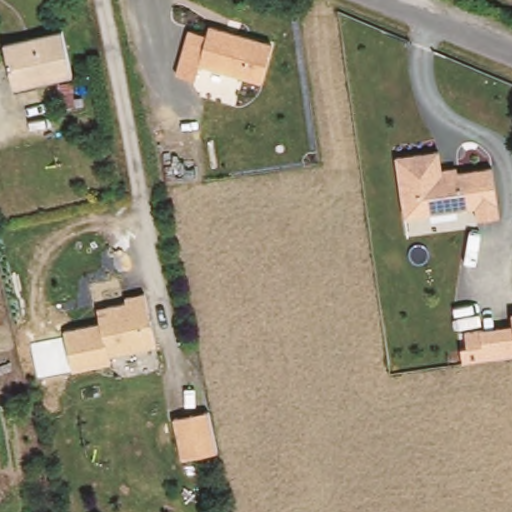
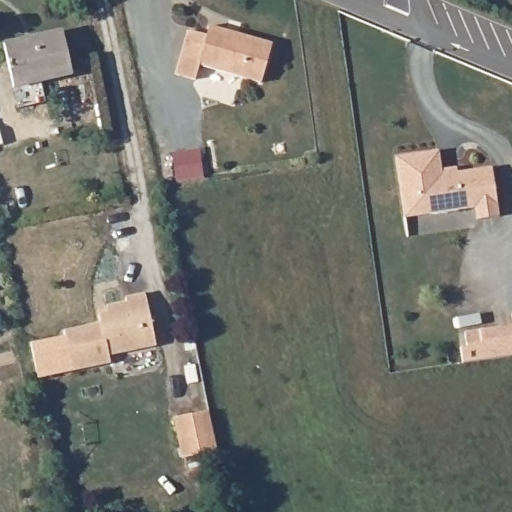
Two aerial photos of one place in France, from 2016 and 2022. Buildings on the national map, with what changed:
unchanged [(262,76),(201,60),(197,75),(177,70),(190,25),(207,30),(210,21),(273,38),(262,76)]
unchanged [(64,30),(75,75),(18,89),(12,67),(5,45),(64,30)]
unchanged [(435,153),(438,176),(492,169),(499,220),(473,224),(471,210),(403,219),(395,158),(435,153)]
unchanged [(111,355),(114,368),(73,376),(65,335),(102,328),(99,309),(126,303),(125,294),(135,292),(143,290),(155,346),(147,348),(111,355)]
unchanged [(512,315),(512,318),(511,315),(512,315)]
unchanged [(466,334),(512,327),(512,357),(465,364),(462,349),(468,348),(466,334)]
new [(72,371),(39,379),(30,343),(65,335),(72,371)]
unchanged [(176,411),(211,404),(219,443),(185,450),(176,411)]

